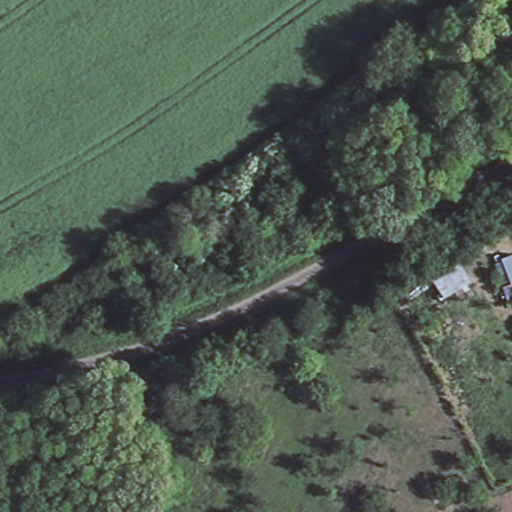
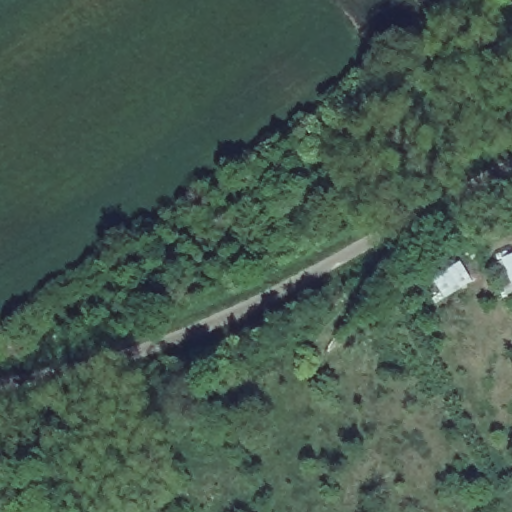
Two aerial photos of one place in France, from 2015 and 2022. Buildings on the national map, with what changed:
unchanged [(507,301),(494,262),(512,254),(512,300),(507,301)]

